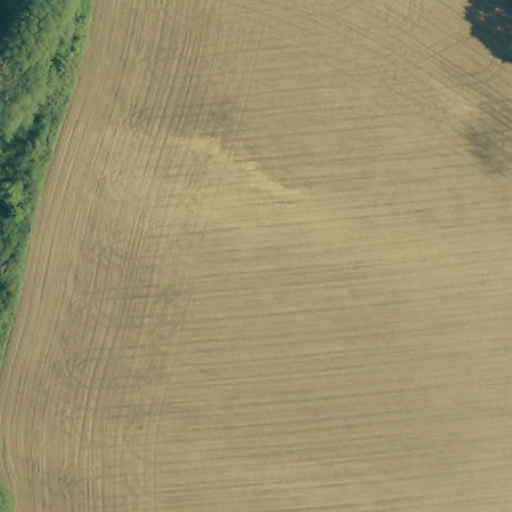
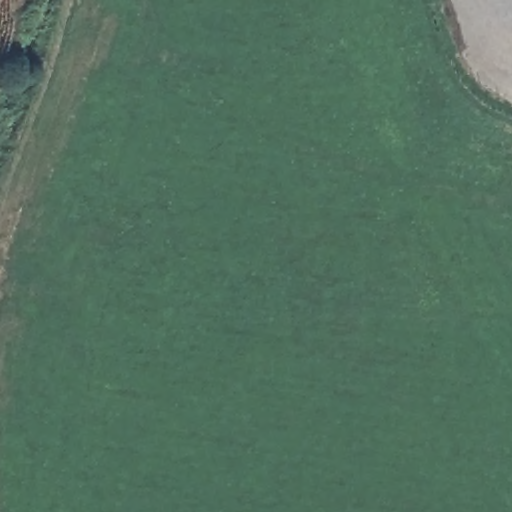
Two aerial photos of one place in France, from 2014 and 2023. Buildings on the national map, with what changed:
[]

